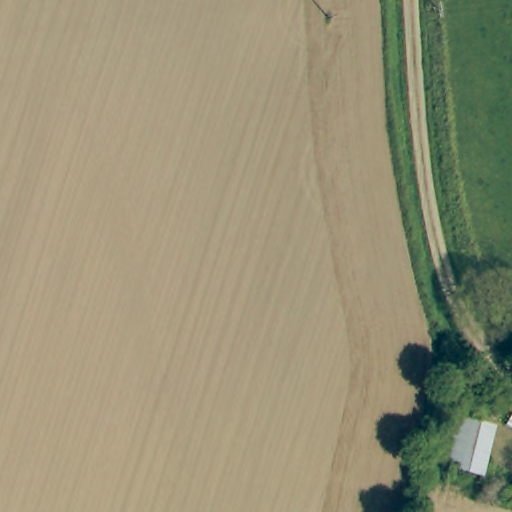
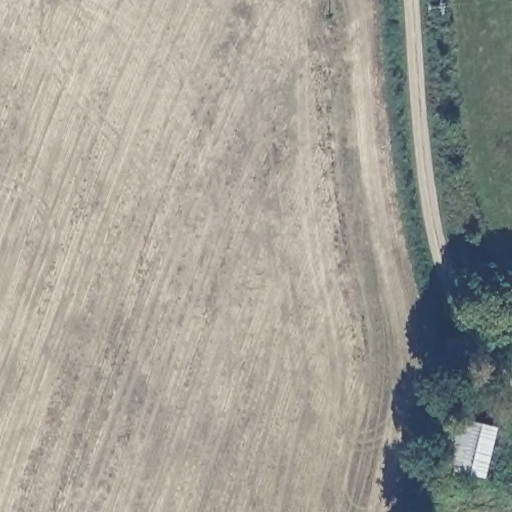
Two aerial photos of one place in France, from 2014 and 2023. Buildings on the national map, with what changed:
unchanged [(498,428),(486,478),(447,470),(459,420),(498,428)]

